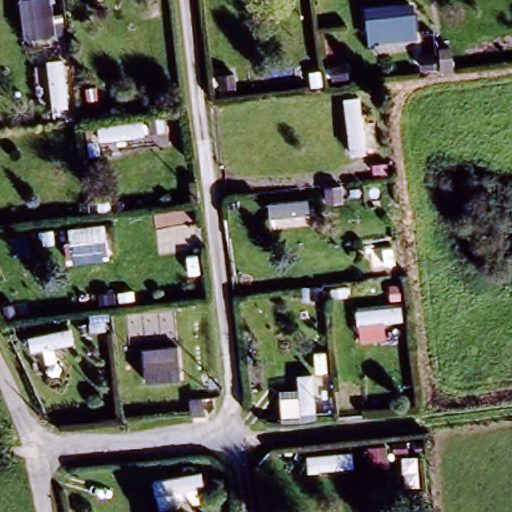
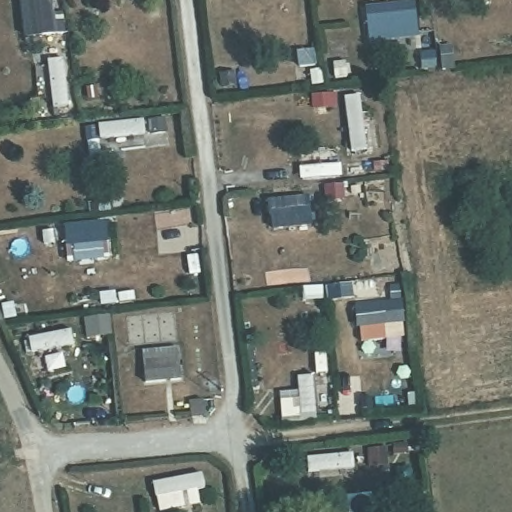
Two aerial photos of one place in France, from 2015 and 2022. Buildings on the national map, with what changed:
unchanged [(25,39),(20,0),(54,0),(59,34),(25,39)]
unchanged [(410,20),(412,36),(404,37),(405,51),(383,53),(382,39),(369,40),(367,25),(410,20)]
unchanged [(360,98),(366,149),(351,150),(345,100),(360,98)]
unchanged [(165,117),(166,131),(152,133),(151,119),(165,117)]
unchanged [(269,202),(307,198),(308,213),(270,216),(269,202)]
unchanged [(104,225),(105,241),(71,244),(69,229),(104,225)]
unchanged [(400,306),(401,322),(358,325),(356,310),(400,306)]
unchanged [(70,330),(73,345),(31,353),(28,338),(70,330)]
unchanged [(299,378),(313,377),(316,412),(301,413),(299,378)]
unchanged [(408,443),(407,454),(393,454),(393,443),(408,443)]
unchanged [(388,448),(388,465),(369,465),(368,448),(388,448)]
unchanged [(186,477),(188,485),(191,485),(194,499),(169,504),(166,492),(161,493),(159,483),(186,477)]

